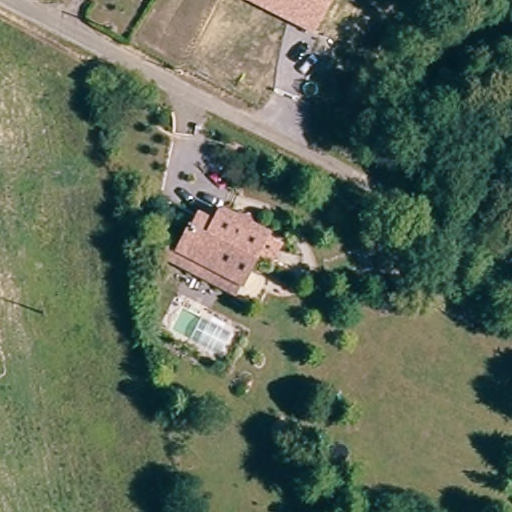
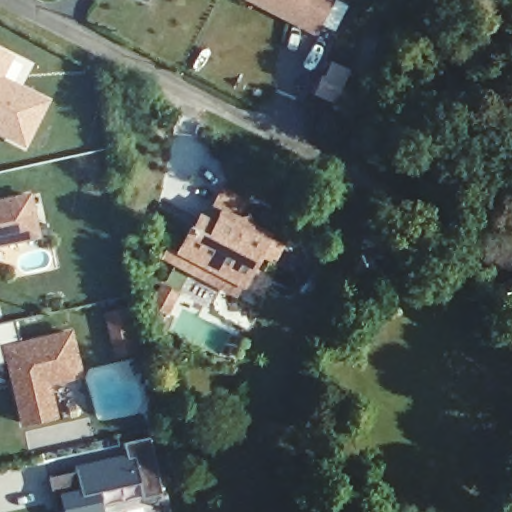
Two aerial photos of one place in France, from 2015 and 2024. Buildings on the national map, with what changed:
unchanged [(315,35),(245,0),(333,0),(315,35)]
new [(1,77),(48,100),(28,141),(0,128),(0,51),(11,56),(1,77)]
new [(41,237),(0,246),(0,204),(32,196),(41,237)]
unchanged [(177,246),(192,218),(196,210),(216,220),(222,207),(237,215),(250,211),(254,223),(268,230),(267,233),(282,241),(275,252),(260,244),(241,279),(235,291),(171,258),(177,246)]
new [(131,313),(139,351),(120,355),(111,317),(131,313)]
new [(22,408),(12,362),(0,365),(0,325),(18,321),(24,345),(73,334),(82,376),(50,384),(53,401),(57,414),(25,424),(22,408)]
new [(78,468),(131,457),(127,442),(153,437),(165,493),(146,497),(142,483),(98,492),(102,512),(68,512),(67,509),(57,511),(50,476),(78,470),(78,468)]

